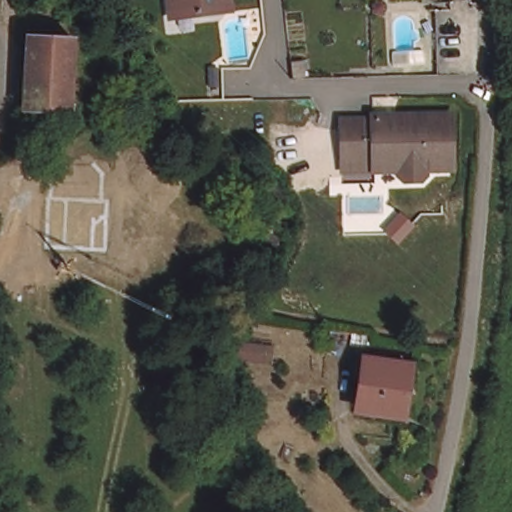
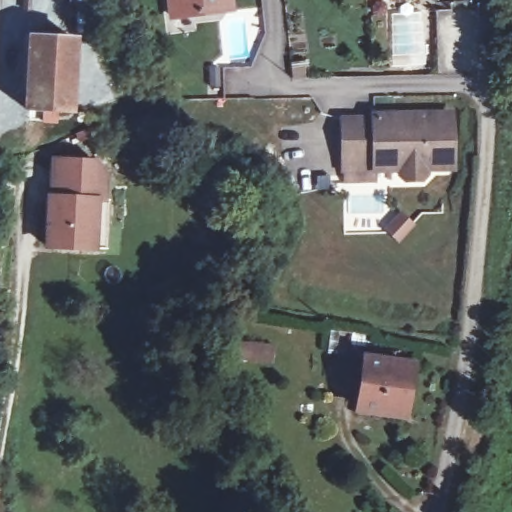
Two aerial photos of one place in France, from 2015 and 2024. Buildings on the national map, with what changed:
unchanged [(30,0),(30,10),(22,9),(23,0),(30,0)]
unchanged [(210,31),(166,36),(161,0),(222,0),(225,29),(210,31)]
unchanged [(451,9),(453,74),(438,75),(437,10),(451,9)]
unchanged [(28,31),(74,34),(70,99),(75,99),(75,106),(70,106),(43,105),(42,116),(29,115),(30,104),(25,104),(28,31)]
unchanged [(304,59),(306,76),(293,78),(291,61),(304,59)]
unchanged [(343,161),(342,120),(373,120),(373,116),(451,114),(452,167),(426,168),(426,173),(421,179),(405,179),(400,174),(400,169),(375,169),(344,170),(343,161)]
new [(47,194),(50,158),(95,159),(108,176),(106,201),(108,201),(107,249),(96,248),(96,253),(42,250),(45,194),(47,194)]
unchanged [(370,364),(415,370),(407,420),(363,413),(370,364)]

